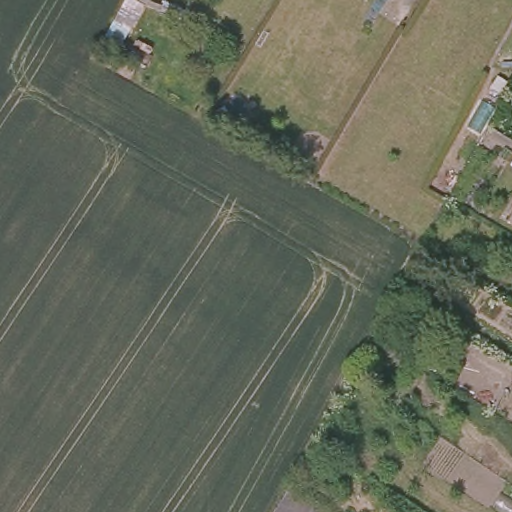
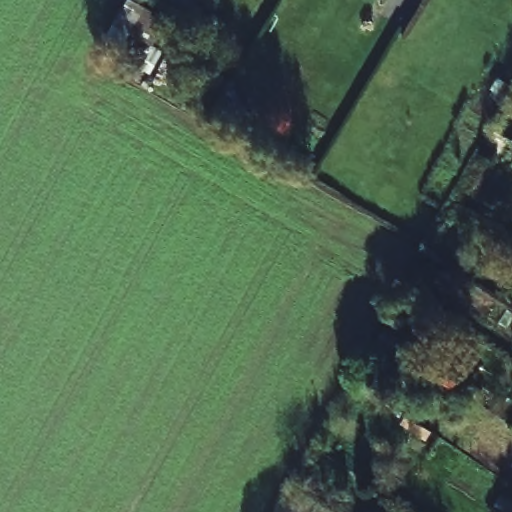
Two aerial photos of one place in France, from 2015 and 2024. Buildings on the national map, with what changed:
unchanged [(130,36),(113,28),(127,1),(143,10),(130,36)]
unchanged [(294,476),(348,508),(346,512),(274,512),(294,476)]

